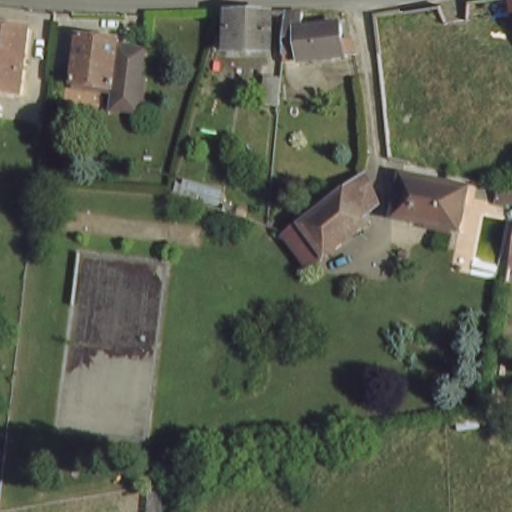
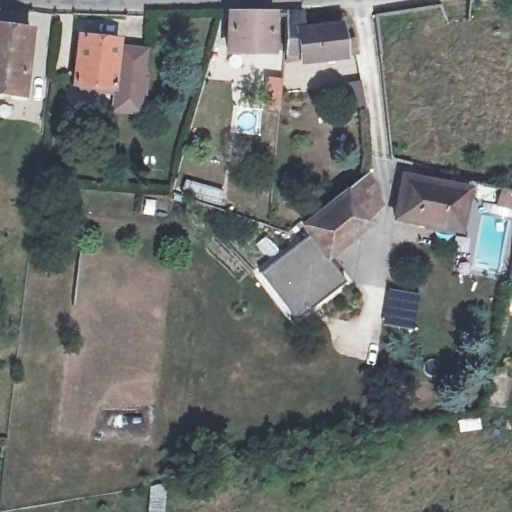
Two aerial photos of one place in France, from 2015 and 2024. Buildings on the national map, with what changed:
unchanged [(215,16),(271,16),(281,16),(280,57),(270,57),(227,59),(215,16)]
unchanged [(0,57),(0,26),(32,29),(29,59),(0,57)]
unchanged [(329,27),(330,41),(340,41),(343,61),(285,63),(285,29),(329,27)]
unchanged [(115,118),(117,96),(72,92),(77,44),(115,47),(115,56),(143,57),(142,91),(139,120),(115,118)]
unchanged [(29,59),(26,92),(0,90),(0,57),(29,59)]
unchanged [(307,237),(299,227),(361,179),(379,203),(360,217),(364,222),(321,257),(307,237)]
unchanged [(456,237),(433,231),(390,220),(398,179),(441,190),(464,195),(456,237)]
new [(512,207),(498,204),(502,191),(512,194),(512,207)]
new [(321,257),(343,282),(296,320),(259,273),(307,237),(321,257)]

